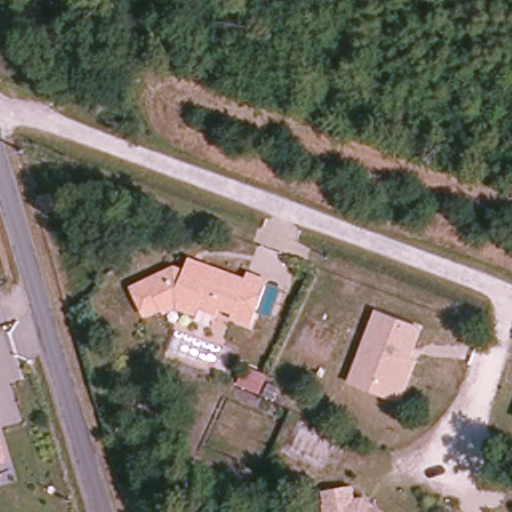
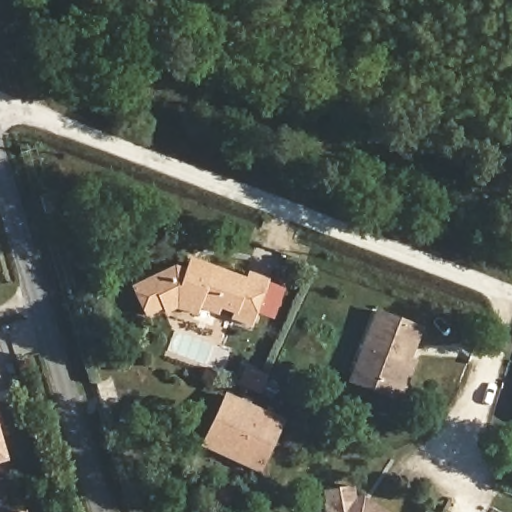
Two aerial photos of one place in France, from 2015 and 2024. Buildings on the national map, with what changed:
unchanged [(185,300),(162,310),(160,305),(142,313),(129,285),(173,265),(184,269),(186,263),(188,257),(198,261),(244,279),(246,273),(264,280),(247,324),(229,317),(231,311),(217,306),(214,311),(185,300)]
unchanged [(411,358),(416,361),(401,401),(351,385),(376,310),(424,328),(411,358)]
new [(247,371),(263,380),(255,395),(239,388),(247,371)]
new [(256,476),(197,448),(224,393),(282,421),(256,476)]
unchanged [(0,464),(0,431),(9,462),(0,464)]
unchanged [(369,500),(387,512),(323,512),(322,503),(325,503),(322,486),(349,482),(352,498),(357,496),(366,503),(369,500)]

